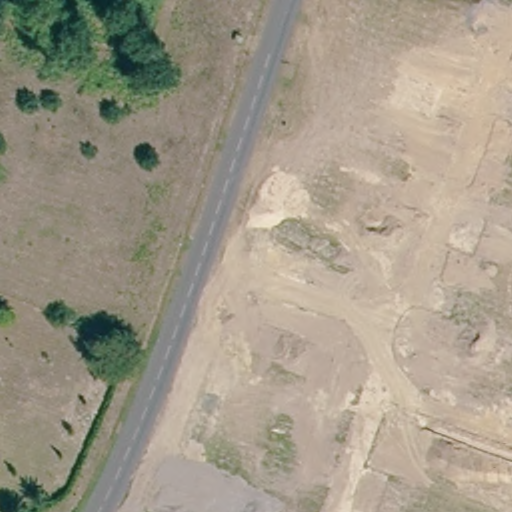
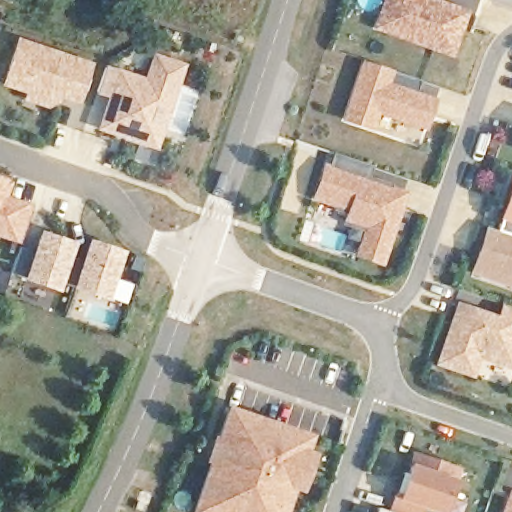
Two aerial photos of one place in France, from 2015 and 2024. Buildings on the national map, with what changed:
new [(424,0),(432,0),(466,12),(451,54),(388,31),(376,27),(386,0),(420,0),(424,1),(424,0)]
new [(94,63),(80,104),(63,99),(60,104),(48,110),(24,102),(26,93),(3,86),(17,37),(94,63)]
new [(158,81),(164,58),(186,65),(158,151),(96,131),(118,68),(158,81)]
new [(365,61),(422,80),(417,95),(434,101),(426,128),(378,111),(372,129),(345,120),(365,61)]
new [(319,198),(334,153),(371,165),(366,180),(404,193),(382,260),(360,252),(367,232),(343,224),(346,213),(337,210),(339,205),(319,198)]
new [(0,179),(2,179),(13,183),(9,197),(33,205),(20,244),(0,237),(0,179)]
new [(512,191),(512,236),(498,231),(512,191)]
new [(483,244),(487,245),(493,229),(498,231),(512,236),(512,285),(473,271),(474,267),(483,244)]
new [(32,256),(40,230),(75,243),(70,259),(63,283),(59,292),(24,280),(12,274),(20,248),(32,256)]
new [(125,251),(108,301),(71,290),(73,285),(63,283),(70,259),(80,264),(88,240),(125,251)]
new [(459,305),(489,316),(488,319),(498,322),(504,304),(512,307),(512,366),(512,367),(479,356),(472,375),(439,364),(459,305)]
new [(211,464),(208,462),(215,441),(219,442),(229,411),(309,438),(304,453),(310,456),(304,473),(299,489),(292,487),(284,512),(195,512),(211,464)]
new [(462,469),(457,480),(447,512),(433,512),(423,509),(422,512),(388,512),(394,493),(399,497),(409,465),(414,452),(462,469)]
new [(512,492),(512,512),(503,512),(510,491),(512,492)]
new [(379,509),(385,512),(378,512),(379,509)]

